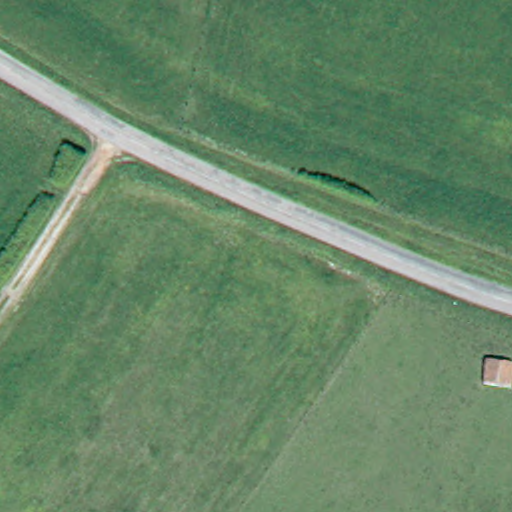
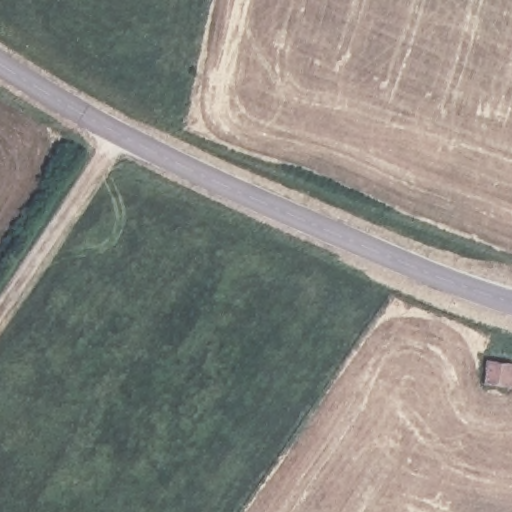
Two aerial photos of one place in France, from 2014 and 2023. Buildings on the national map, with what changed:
unchanged [(487,364),(512,367),(512,389),(484,385),(487,364)]

